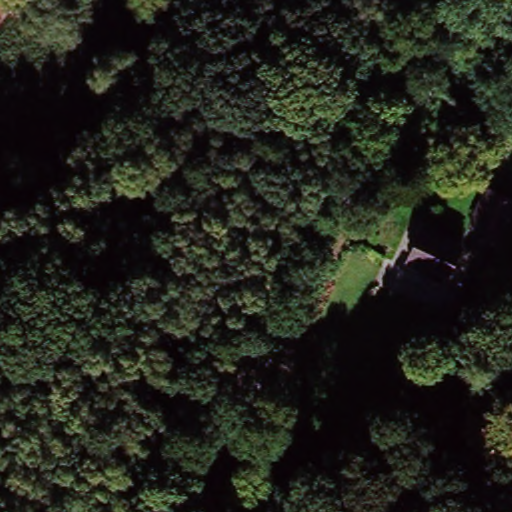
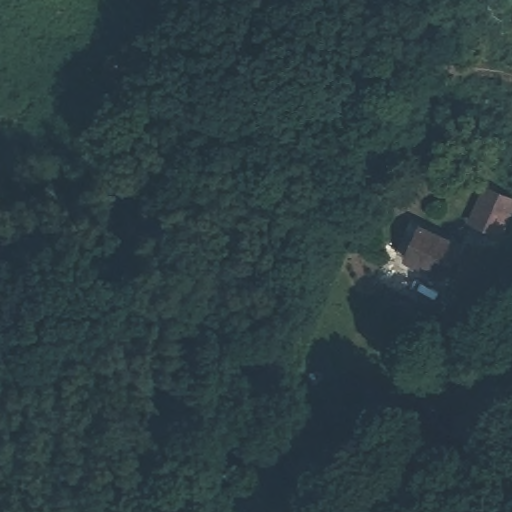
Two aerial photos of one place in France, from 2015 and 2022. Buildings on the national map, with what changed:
unchanged [(498,237),(467,222),(482,189),(512,202),(512,206),(498,237)]
unchanged [(449,278),(409,261),(422,231),(461,247),(449,278)]

